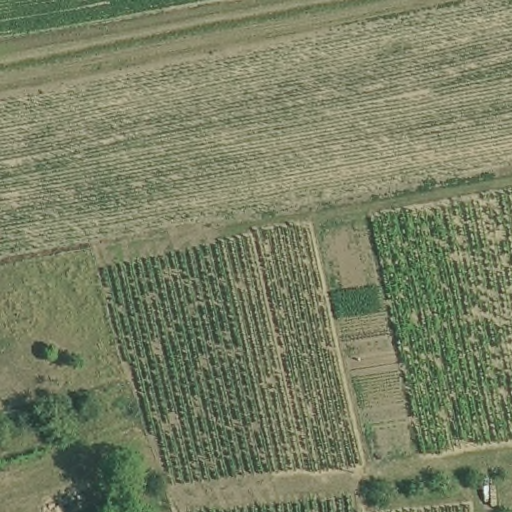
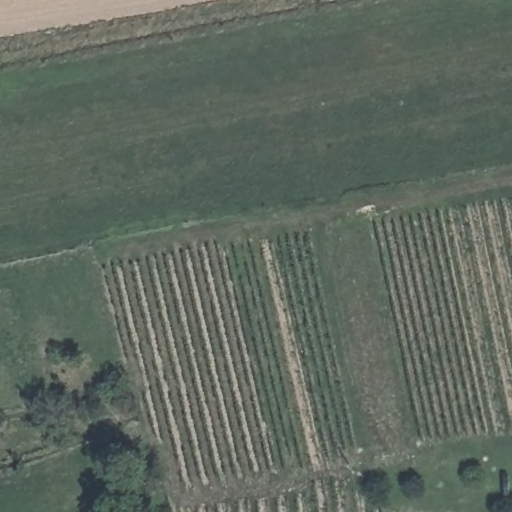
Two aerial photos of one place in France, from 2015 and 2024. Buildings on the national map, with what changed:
[]

